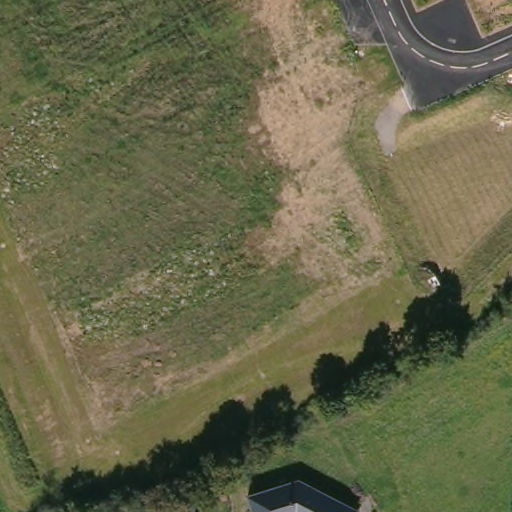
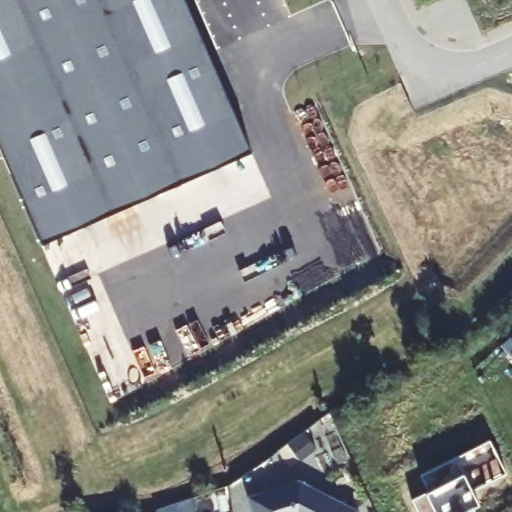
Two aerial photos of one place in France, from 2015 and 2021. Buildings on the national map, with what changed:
new [(252,156),(41,247),(0,150),(0,0),(184,0),(252,156)]
unchanged [(299,480),(357,512),(253,512),(247,495),(299,480)]
new [(193,512),(152,512),(151,508),(188,497),(193,512)]

